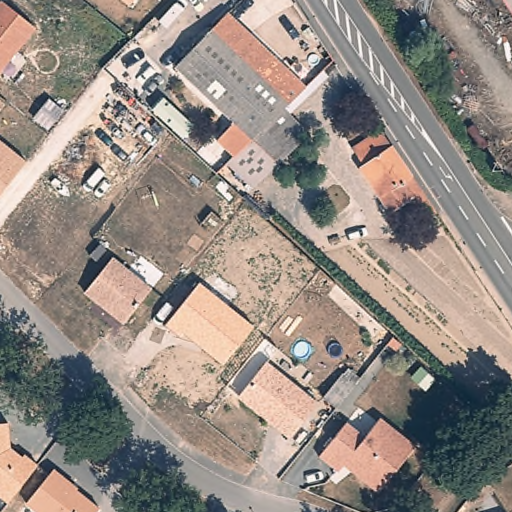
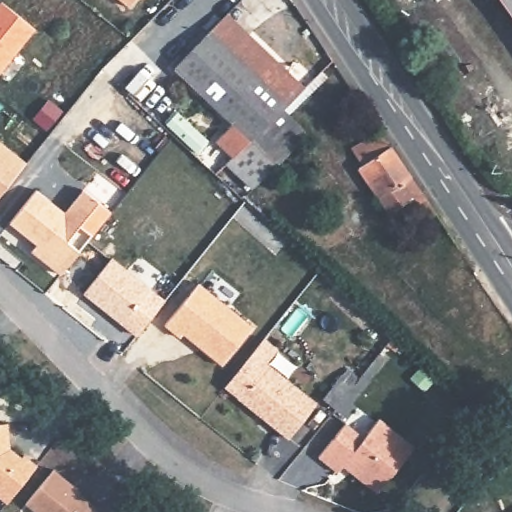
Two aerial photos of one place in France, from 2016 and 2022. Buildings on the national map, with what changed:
unchanged [(129,7),(121,0),(134,0),(129,7)]
unchanged [(149,58),(130,38),(169,0),(209,0),(149,58)]
unchanged [(512,22),(496,0),(512,0),(512,22)]
unchanged [(34,28),(0,71),(0,4),(2,2),(34,28)]
unchanged [(252,188),(227,163),(233,157),(216,141),(233,124),(175,68),(227,13),(304,88),(322,71),(328,77),(287,116),(306,135),(252,188)]
unchanged [(418,217),(405,196),(385,209),(354,163),(358,160),(346,144),(374,125),(406,172),(430,209),(418,217)]
unchanged [(28,164),(0,198),(0,142),(28,164)]
new [(36,190),(66,212),(83,190),(112,213),(93,237),(79,226),(67,241),(80,251),(61,276),(30,251),(36,245),(9,223),(36,190)]
unchanged [(150,288),(121,326),(82,294),(109,258),(150,288)]
unchanged [(251,325),(219,365),(181,333),(177,337),(162,326),(197,282),(251,325)]
unchanged [(221,386),(265,337),(277,349),(267,360),(237,399),(221,386)]
unchanged [(320,401),(289,442),(237,399),(267,360),(320,401)]
unchanged [(338,472),(318,456),(346,423),(364,437),(379,418),(414,446),(377,493),(351,472),(343,465),(338,472)]
unchanged [(9,426),(10,448),(21,457),(25,454),(38,465),(7,503),(0,497),(0,427),(9,426)]
unchanged [(100,512),(32,512),(24,506),(55,467),(104,508),(100,512)]

